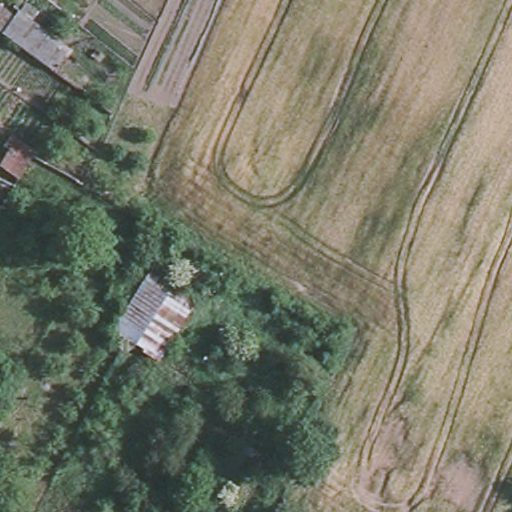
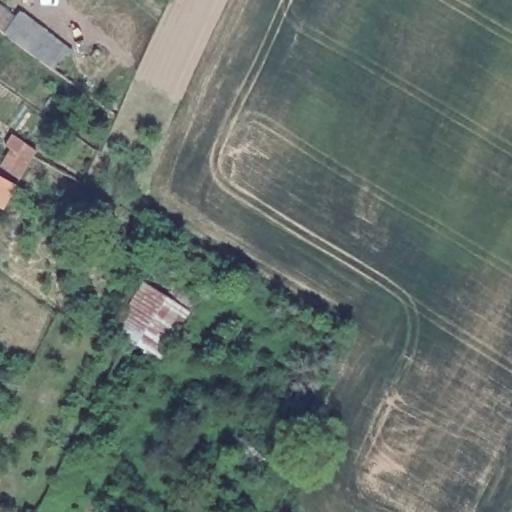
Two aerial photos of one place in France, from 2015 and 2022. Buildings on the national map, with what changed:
unchanged [(0,5),(14,14),(19,6),(90,57),(71,83),(0,31),(0,5)]
unchanged [(5,156),(14,140),(27,148),(23,155),(18,164),(5,156)]
unchanged [(0,176),(18,185),(4,208),(0,206),(0,176)]
unchanged [(196,306),(167,356),(113,324),(148,271),(196,306)]

